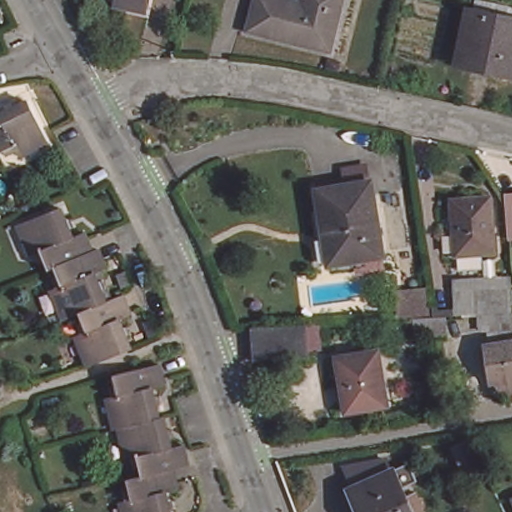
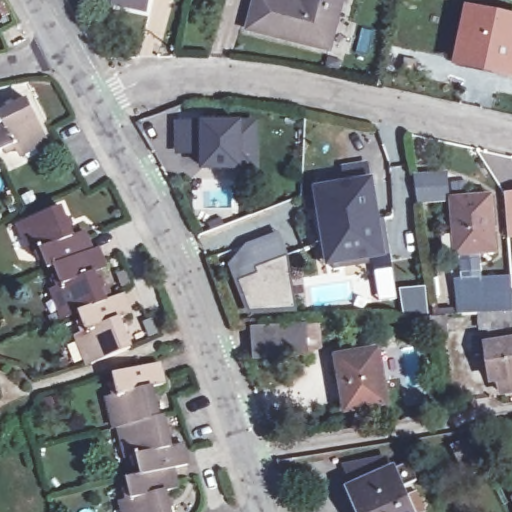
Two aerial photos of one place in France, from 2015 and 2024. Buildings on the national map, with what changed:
unchanged [(116,4),(117,0),(148,0),(145,10),(116,4)]
unchanged [(293,12),(300,14),(302,8),(304,0),(343,0),(329,54),(249,34),(258,0),(270,0),(295,6),(293,12)]
unchanged [(512,73),(458,61),(470,10),(512,20),(512,73)]
unchanged [(5,114),(13,110),(10,105),(17,101),(20,106),(33,100),(52,138),(22,152),(21,150),(12,155),(9,150),(0,154),(0,104),(5,114)]
new [(258,170),(243,170),(200,171),(200,121),(242,121),(258,121),(258,170)]
unchanged [(330,264),(317,190),(350,185),(347,170),(365,166),(368,181),(372,181),(383,255),(330,264)]
unchanged [(505,194),(512,194),(512,236),(508,236),(505,194)]
unchanged [(495,251),(457,254),(452,199),(490,196),(495,251)]
unchanged [(130,340),(135,353),(95,370),(83,338),(86,337),(82,327),(87,325),(91,335),(107,330),(100,311),(84,317),(71,323),(59,292),(62,291),(58,281),(63,279),(60,271),(69,267),(62,248),(46,255),(50,265),(45,266),(41,256),(38,257),(27,227),(66,211),(71,225),(77,223),(80,230),(74,232),(77,241),(89,236),(92,245),(97,255),(102,253),(107,265),(110,273),(105,275),(108,284),(111,291),(116,303),(127,300),(135,320),(123,324),(127,332),(132,330),(135,338),(130,340)]
new [(231,262),(246,244),(279,232),(288,255),(255,268),(257,273),(238,280),(231,262)]
new [(250,312),(238,280),(257,273),(255,268),(288,255),(297,309),(250,312)]
unchanged [(488,330),(488,313),(463,314),(460,279),(506,276),(507,312),(507,329),(488,330)]
unchanged [(413,316),(428,315),(433,315),(447,315),(447,332),(431,333),(415,334),(413,316)]
unchanged [(325,332),(327,358),(313,359),(313,365),(258,369),(256,337),(325,332)]
unchanged [(499,380),(491,380),(486,345),(512,341),(512,391),(501,393),(499,380)]
unchanged [(347,410),(337,357),(377,350),(387,404),(347,410)]
unchanged [(166,512),(120,512),(118,505),(122,504),(119,493),(125,492),(122,482),(137,479),(135,470),(130,472),(127,461),(125,462),(117,431),(113,432),(105,400),(108,400),(106,389),(111,388),(109,378),(154,368),(157,380),(159,389),(147,391),(149,400),(155,399),(157,407),(151,408),(154,421),(158,420),(162,435),(167,433),(170,441),(163,442),(165,451),(177,448),(182,470),(167,473),(172,493),(160,496),(162,505),(168,503),(170,511),(166,512)]
unchanged [(467,440),(478,465),(465,471),(453,446),(467,440)]
unchanged [(352,487),(354,486),(346,465),(385,458),(390,470),(393,469),(409,462),(417,480),(401,487),(405,498),(415,494),(422,511),(421,512),(362,512),(352,487)]

